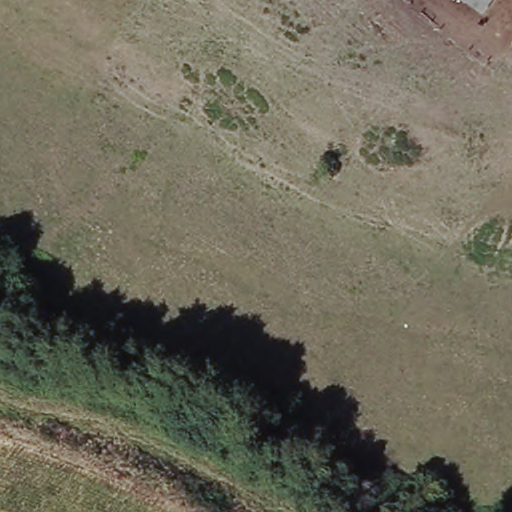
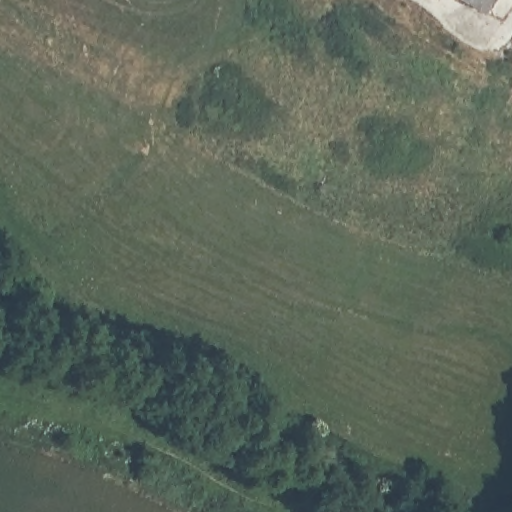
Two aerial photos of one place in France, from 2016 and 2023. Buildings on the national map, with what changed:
unchanged [(453,0),(493,0),(478,19),(453,0)]

